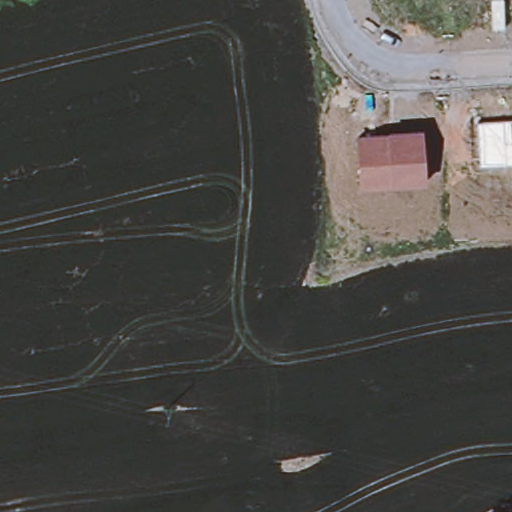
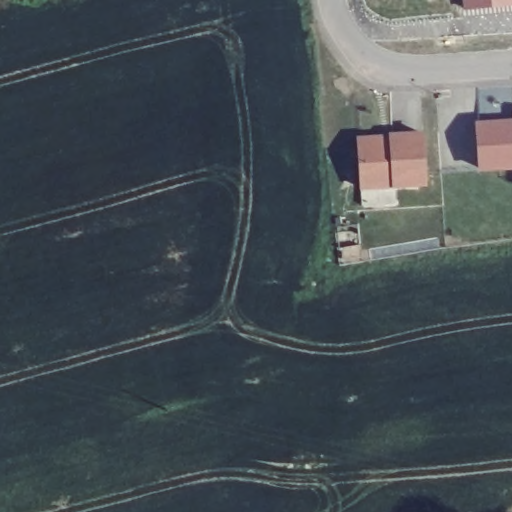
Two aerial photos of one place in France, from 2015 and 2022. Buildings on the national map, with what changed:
new [(463,10),(462,0),(512,0),(512,6),(463,10)]
unchanged [(478,124),(512,123),(512,166),(481,167),(478,124)]
unchanged [(356,135),(425,132),(428,185),(360,189),(356,135)]

